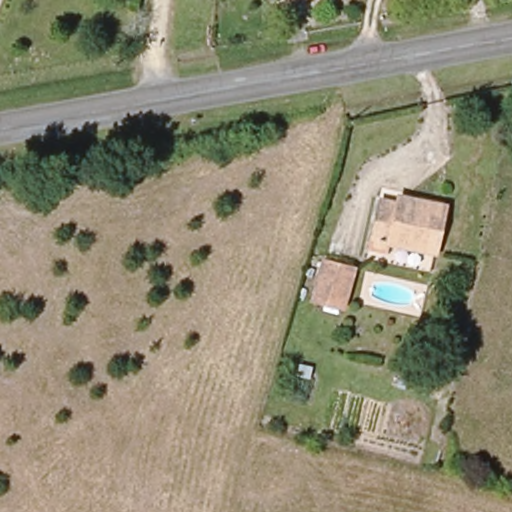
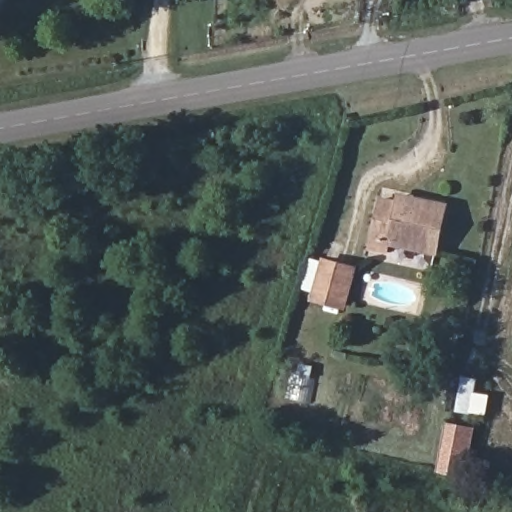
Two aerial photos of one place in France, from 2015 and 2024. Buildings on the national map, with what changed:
unchanged [(451,209),(440,253),(394,241),(391,253),(374,248),(385,202),(402,206),(404,197),(451,209)]
unchanged [(355,265),(344,301),(318,293),(329,257),(355,265)]
new [(463,476),(436,471),(446,421),(474,427),(463,476)]

